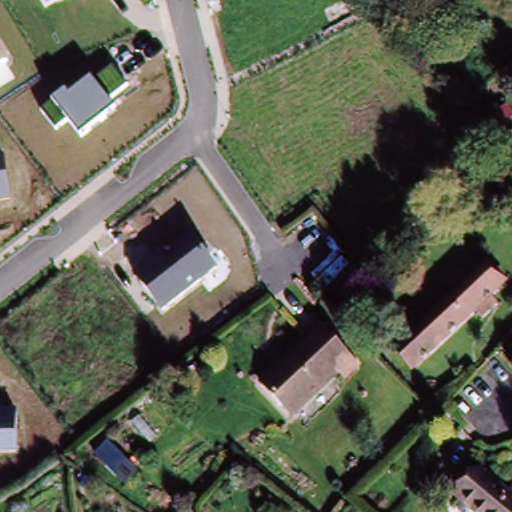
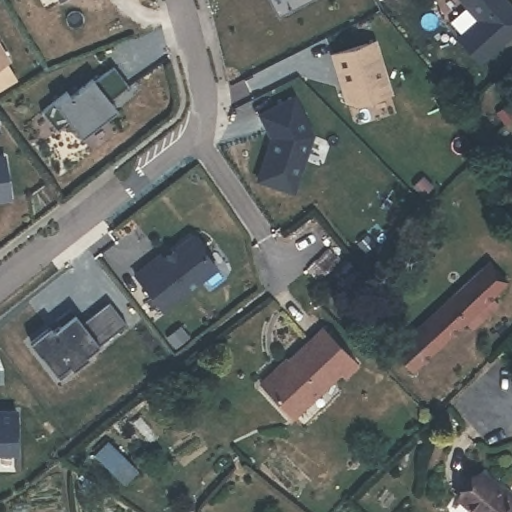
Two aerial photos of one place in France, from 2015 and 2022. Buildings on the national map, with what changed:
new [(512,9),(512,29),(482,57),(463,37),(484,17),(468,0),(503,0),(512,9)]
new [(374,41),(392,93),(358,104),(349,102),(333,55),(374,41)]
unchanged [(0,65),(0,46),(8,60),(0,65)]
unchanged [(55,101),(66,92),(69,95),(92,78),(113,67),(125,84),(106,98),(114,109),(81,136),(69,119),(56,129),(43,110),(55,101)]
demolished [(389,94),(402,111),(414,105),(426,128),(394,153),(366,107),(389,94)]
new [(273,137),(261,115),(291,97),(311,134),(293,190),(259,177),(269,146),(273,137)]
unchanged [(12,201),(0,203),(0,155),(6,154),(12,201)]
unchanged [(134,275),(192,234),(218,267),(162,312),(134,275)]
unchanged [(398,357),(432,323),(427,317),(448,298),(453,303),(481,277),(489,267),(499,277),(497,282),(504,291),(499,296),(417,377),(398,357)]
new [(52,370),(33,346),(52,331),(55,335),(63,329),(58,323),(73,312),(82,324),(109,303),(128,326),(88,357),(89,360),(74,372),(61,382),(52,370)]
unchanged [(342,382),(336,377),(291,424),(261,394),(316,337),(352,372),(342,382)]
unchanged [(18,452),(0,453),(0,410),(16,410),(18,452)]
unchanged [(478,473),(512,503),(512,512),(463,512),(453,503),(478,473)]

